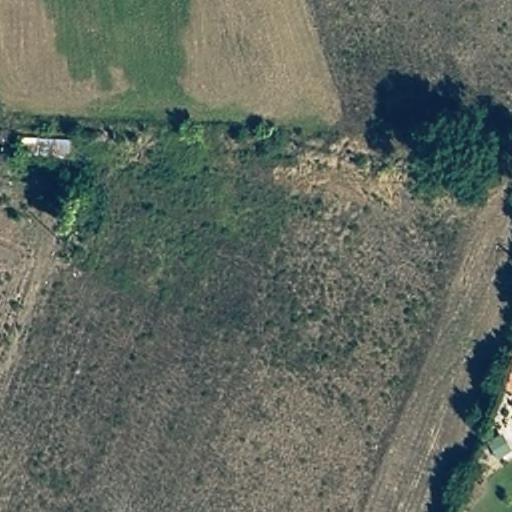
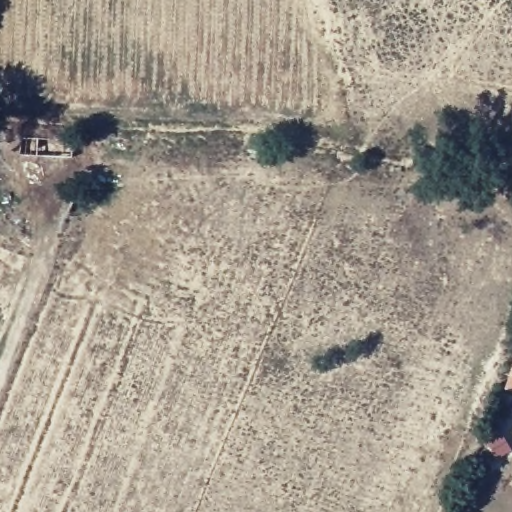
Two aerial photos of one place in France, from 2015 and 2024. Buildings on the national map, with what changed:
unchanged [(512,369),(512,395),(503,391),(508,377),(512,369)]

